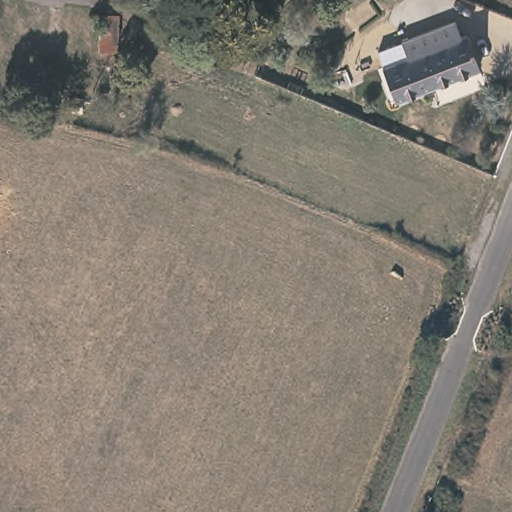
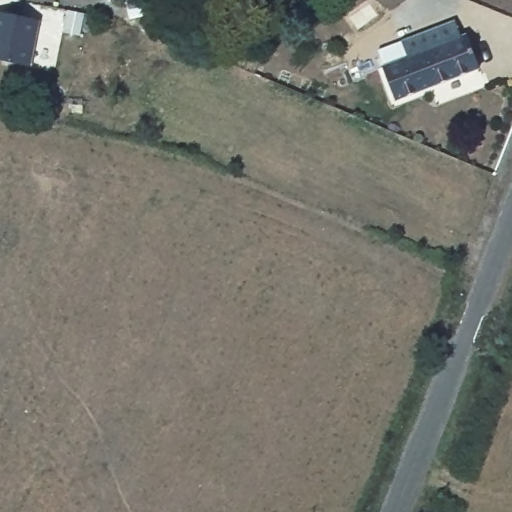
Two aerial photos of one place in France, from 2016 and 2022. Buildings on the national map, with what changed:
demolished [(49,40),(33,41),(31,9),(47,8),(49,40)]
new [(40,64),(0,60),(0,26),(2,14),(45,20),(40,64)]
unchanged [(456,40),(464,37),(476,73),(390,107),(376,72),(401,63),(396,48),(451,25),(456,40)]

